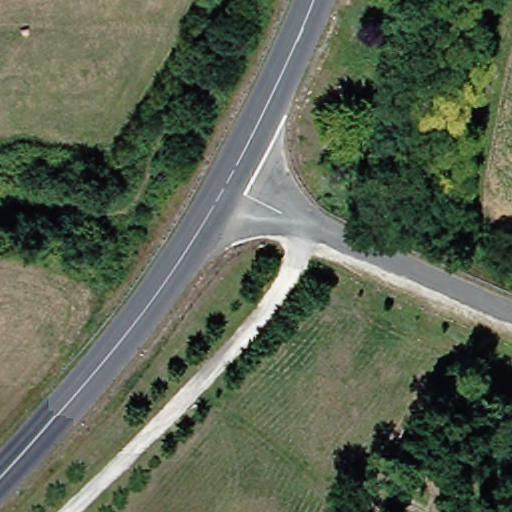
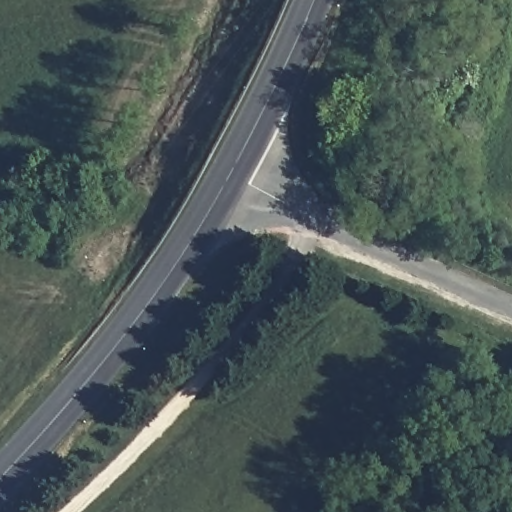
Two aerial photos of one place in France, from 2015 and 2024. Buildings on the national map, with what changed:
[]

